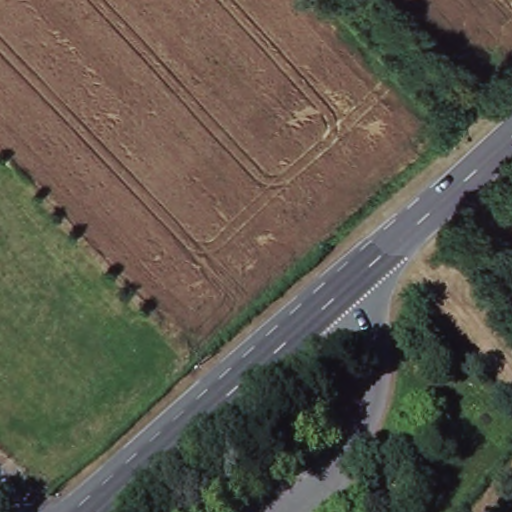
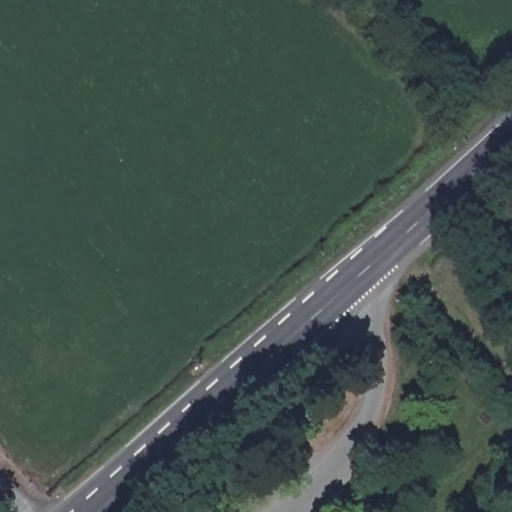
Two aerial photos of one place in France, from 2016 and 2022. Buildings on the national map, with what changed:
[]

